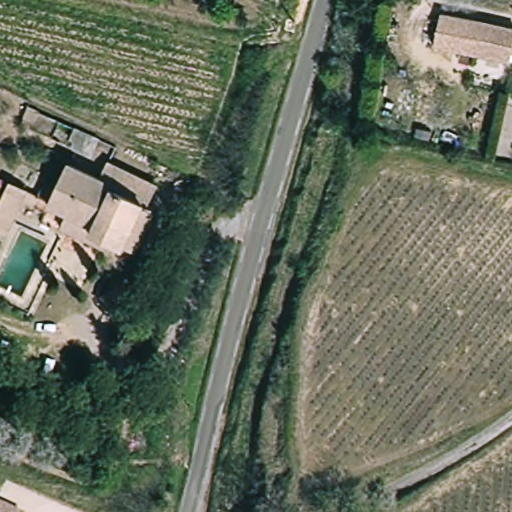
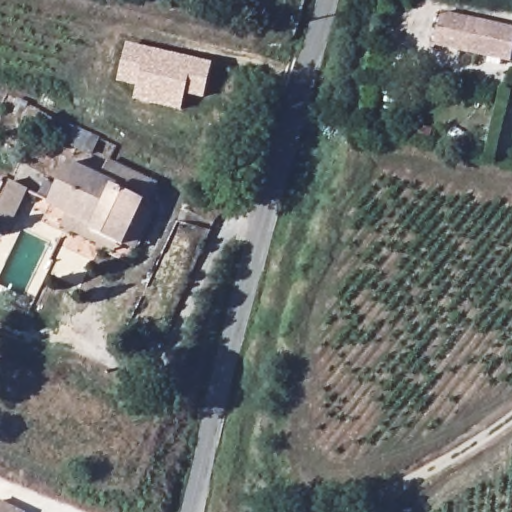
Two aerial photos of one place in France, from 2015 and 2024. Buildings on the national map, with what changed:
unchanged [(445,17),(512,31),(512,62),(438,47),(445,17)]
new [(186,94),(183,111),(135,99),(139,85),(118,81),(126,42),(213,62),(205,99),(186,94)]
unchanged [(82,131),(106,141),(98,157),(75,146),(82,131)]
unchanged [(64,221),(71,207),(52,199),(71,163),(102,176),(110,159),(160,180),(150,199),(159,202),(138,242),(127,237),(126,239),(120,237),(116,244),(64,221)]
unchanged [(17,184),(34,191),(14,230),(0,224),(0,217),(17,184)]
unchanged [(20,512),(0,512),(0,504),(1,503),(20,512)]

